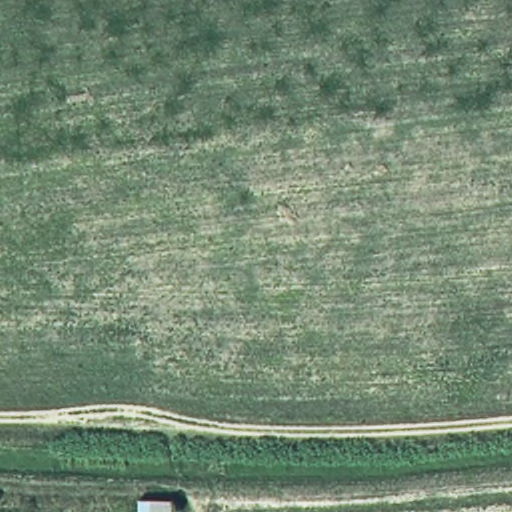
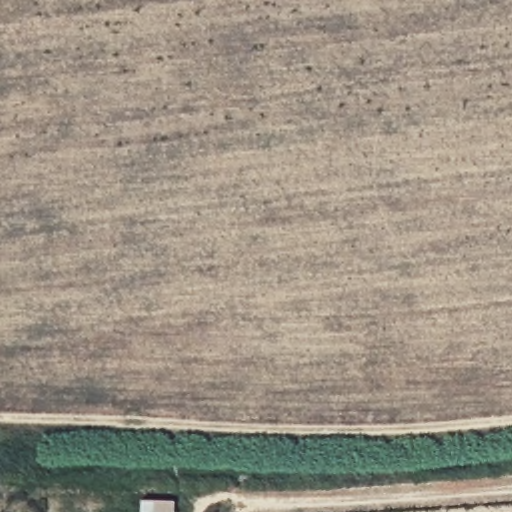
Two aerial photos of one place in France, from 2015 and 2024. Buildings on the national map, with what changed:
unchanged [(140,505),(170,505),(170,512),(140,512),(140,505)]

